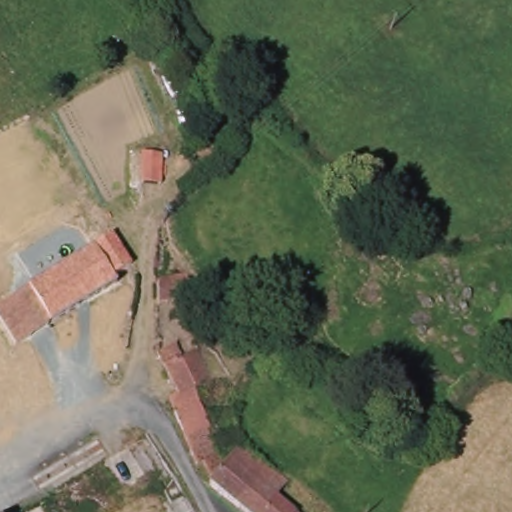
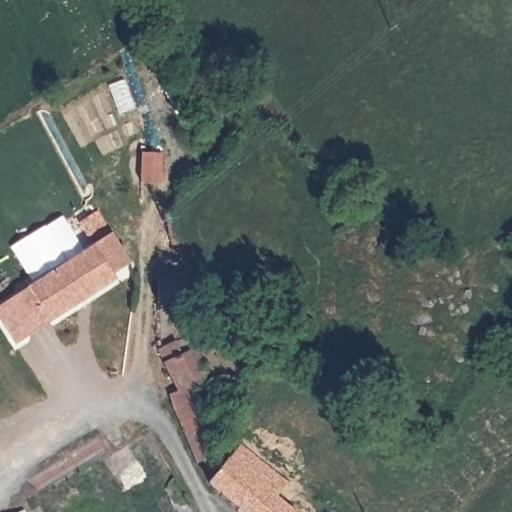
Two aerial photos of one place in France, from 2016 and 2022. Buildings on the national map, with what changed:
unchanged [(132,155),(151,154),(151,184),(132,185),(132,155)]
unchanged [(123,258),(120,260),(108,269),(113,275),(14,342),(0,321),(0,302),(7,297),(87,242),(105,230),(123,258)]
unchanged [(149,282),(179,274),(184,280),(187,291),(150,305),(149,282)]
unchanged [(168,338),(179,352),(192,343),(197,349),(211,395),(197,399),(193,387),(183,390),(173,393),(150,350),(168,338)]
unchanged [(212,482),(198,461),(191,460),(183,438),(167,395),(173,393),(183,390),(193,387),(197,399),(206,427),(202,429),(218,462),(234,445),(240,448),(287,480),(284,485),(278,496),(299,512),(241,512),(206,485),(212,482)]

